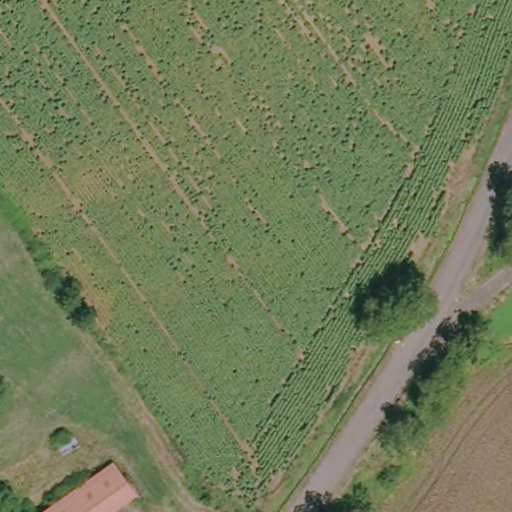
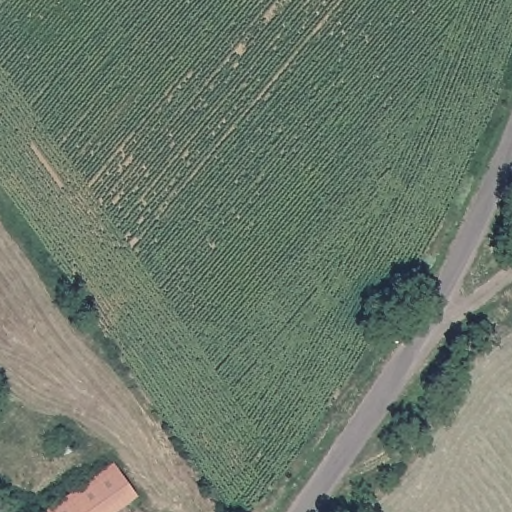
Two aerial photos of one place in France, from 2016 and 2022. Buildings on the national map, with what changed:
unchanged [(142,501),(127,512),(47,512),(116,464),(142,501)]

